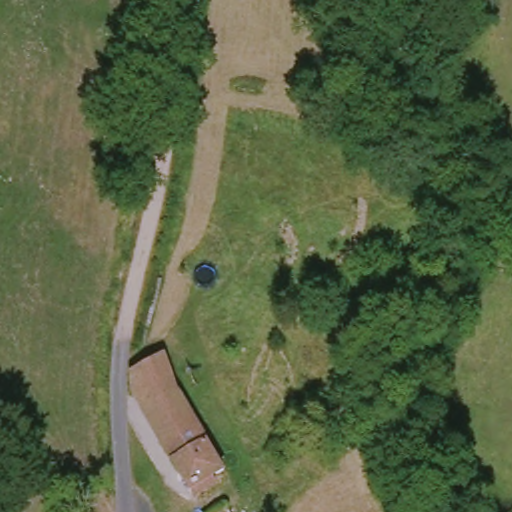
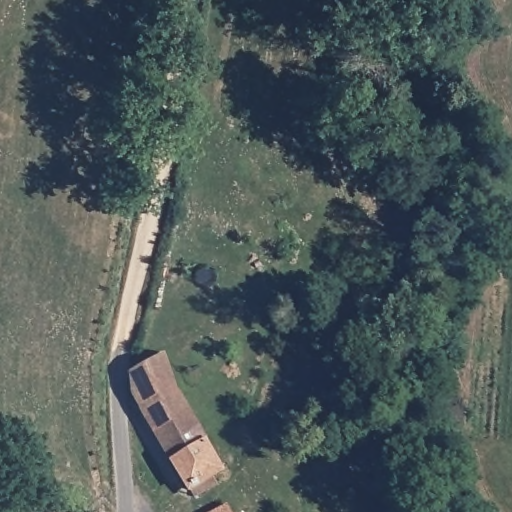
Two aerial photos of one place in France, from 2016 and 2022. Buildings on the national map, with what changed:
unchanged [(171,356),(225,469),(193,488),(138,385),(141,368),(171,356)]
unchanged [(220,501),(225,512),(202,512),(220,501)]

